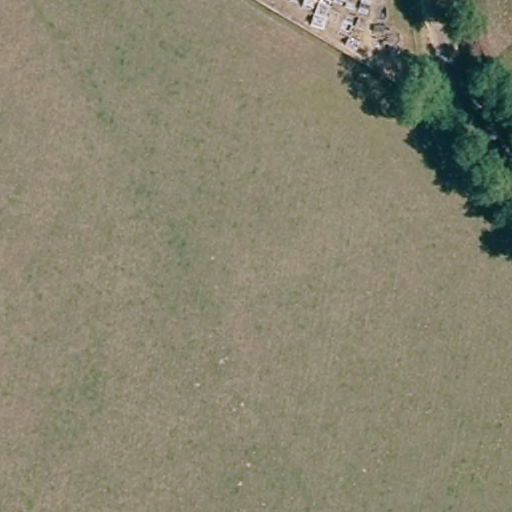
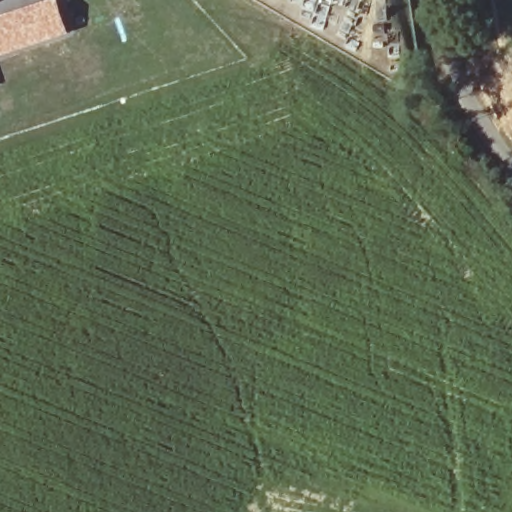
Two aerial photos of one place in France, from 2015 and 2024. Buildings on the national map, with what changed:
new [(58,0),(70,34),(0,56),(0,14),(43,0),(58,0)]

